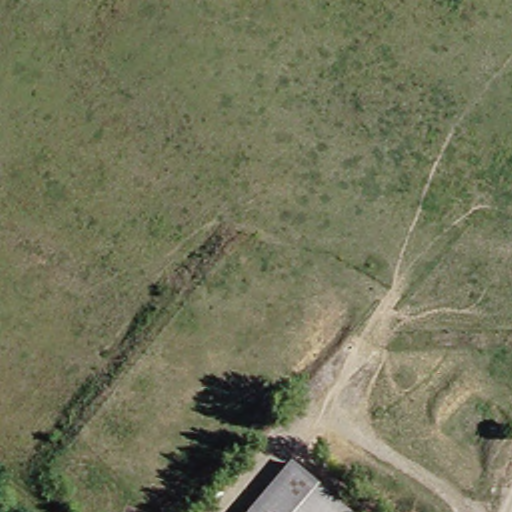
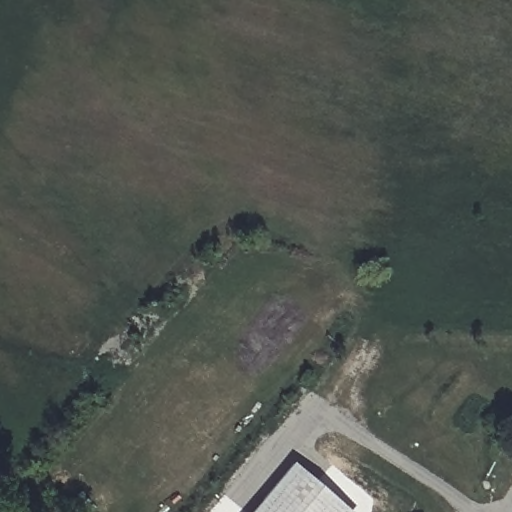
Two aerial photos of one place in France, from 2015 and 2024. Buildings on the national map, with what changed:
unchanged [(355,508),(353,512),(266,512),(300,466),(355,508)]

